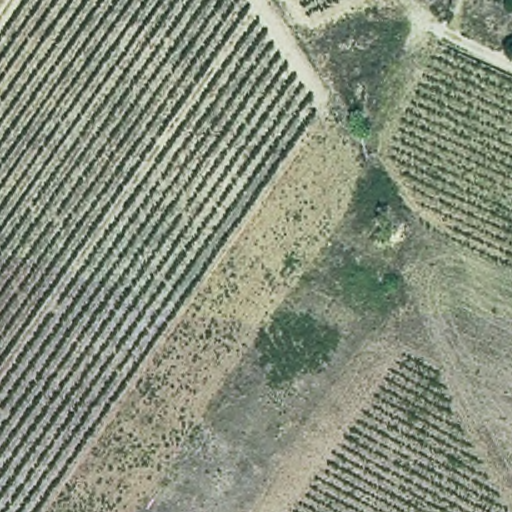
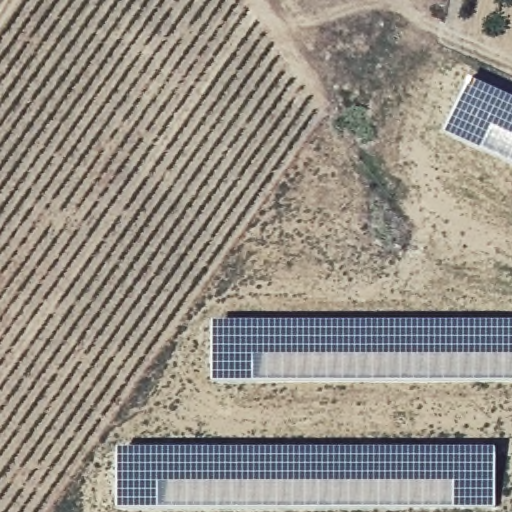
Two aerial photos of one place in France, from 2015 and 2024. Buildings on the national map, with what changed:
new [(210,322),(300,320),(512,320),(512,383),(373,381),(210,383),(210,322)]
new [(115,448),(495,447),(496,509),(115,509),(115,448)]

